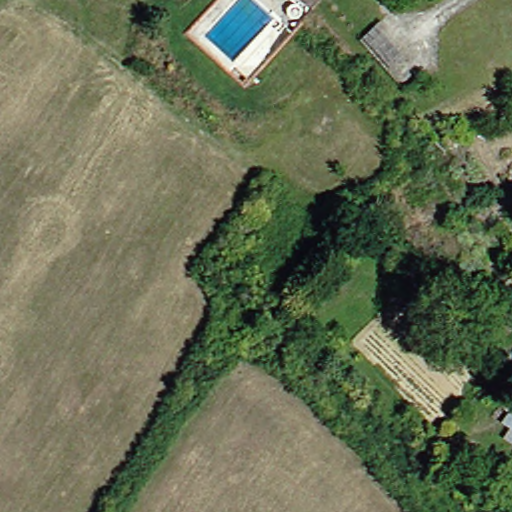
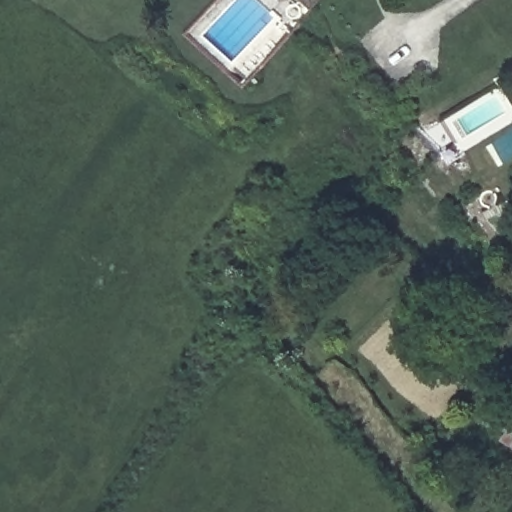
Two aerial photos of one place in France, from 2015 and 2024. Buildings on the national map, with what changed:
unchanged [(290,4),(295,0),(317,0),(301,14),(290,4)]

